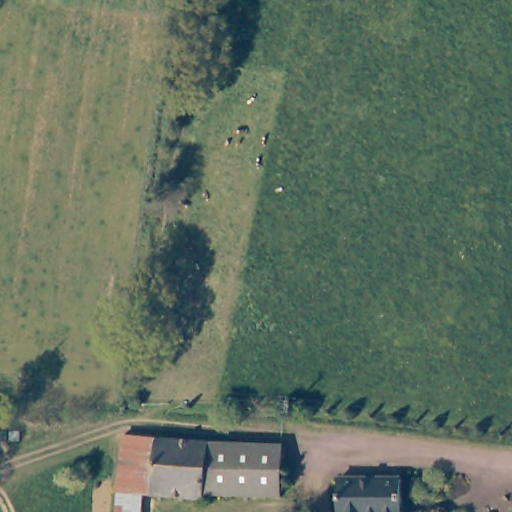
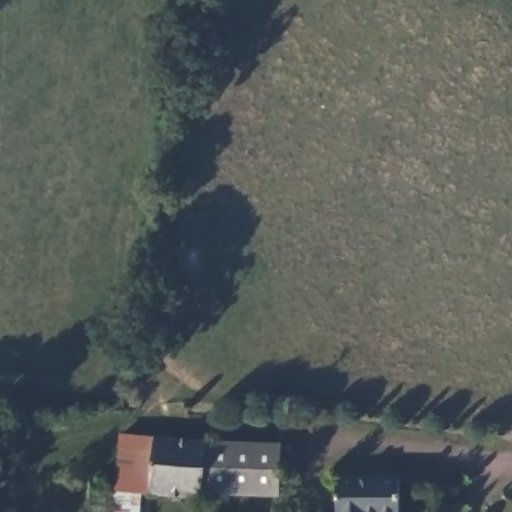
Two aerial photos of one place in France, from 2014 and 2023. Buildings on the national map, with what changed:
unchanged [(204,493),(204,499),(142,495),(141,512),(114,512),(119,440),(119,436),(127,437),(207,442),(204,493)]
unchanged [(279,446),(276,498),(204,493),(207,442),(279,446)]
unchanged [(332,480),(377,480),(375,511),(345,508),(331,507),(332,480)]
unchanged [(393,481),(393,512),(331,512),(331,507),(345,508),(375,511),(377,480),(393,481)]

